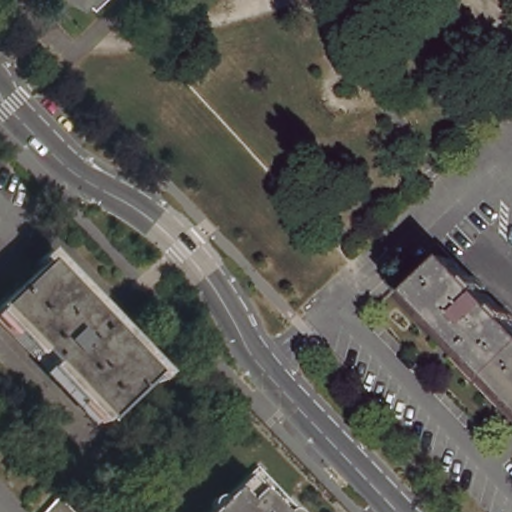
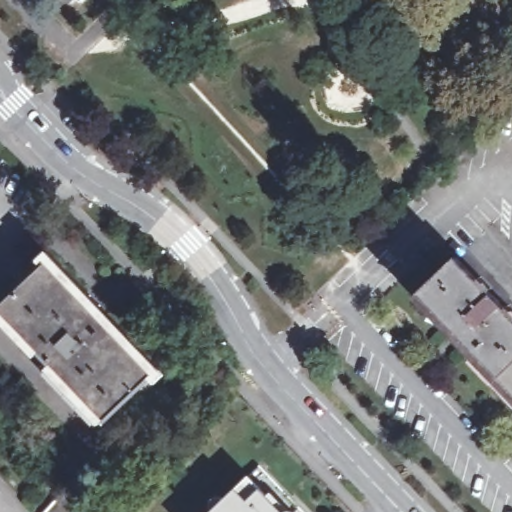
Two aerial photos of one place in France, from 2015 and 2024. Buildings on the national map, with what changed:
unchanged [(71,0),(85,0),(78,7),(71,0)]
unchanged [(462,257),(512,310),(512,385),(424,293),(462,257)]
unchanged [(53,263),(160,375),(112,420),(7,310),(53,263)]
unchanged [(512,395),(418,298),(424,293),(512,385),(512,395)]
unchanged [(245,477),(278,512),(209,512),(245,477)]
unchanged [(65,495),(83,512),(50,512),(65,495)]

